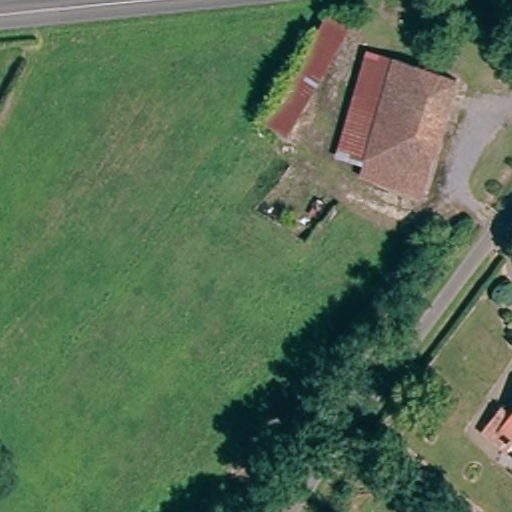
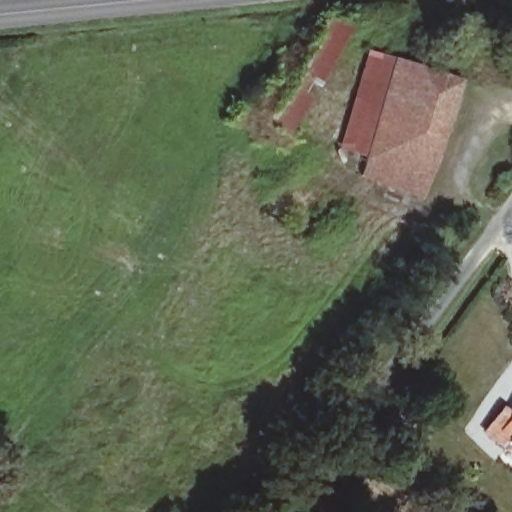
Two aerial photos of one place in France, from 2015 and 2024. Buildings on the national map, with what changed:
unchanged [(293,132),(267,112),(331,12),(360,25),(293,132)]
unchanged [(364,180),(366,164),(338,157),(368,51),(394,56),(465,81),(427,200),(364,180)]
unchanged [(507,408),(512,411),(512,450),(490,433),(507,408)]

